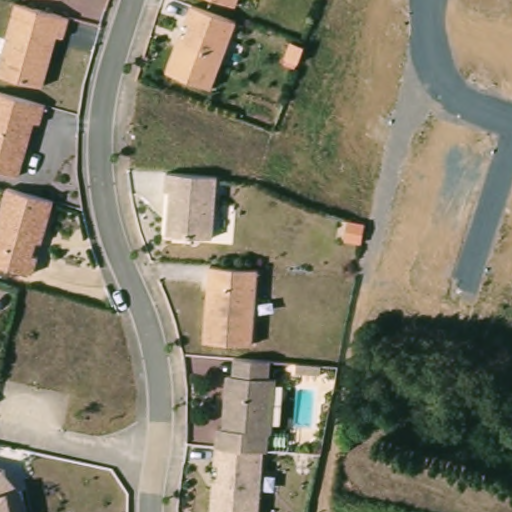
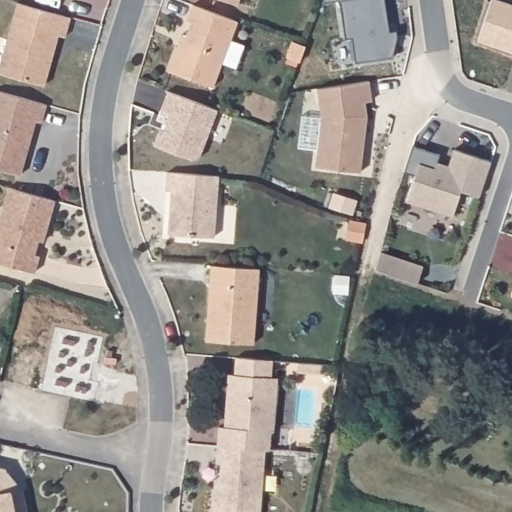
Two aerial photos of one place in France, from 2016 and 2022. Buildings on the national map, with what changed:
unchanged [(41,81),(0,69),(0,47),(14,0),(22,0),(67,13),(62,32),(55,30),(46,60),(41,81)]
unchanged [(235,17),(210,82),(166,66),(175,40),(179,30),(184,32),(189,17),(184,16),(190,0),(212,8),(235,17)]
unchanged [(231,0),(234,0),(234,1),(231,0)]
new [(389,31),(397,30),(397,36),(393,58),(359,62),(356,38),(350,39),(345,0),(384,0),(389,31)]
new [(512,5),(512,52),(478,41),(491,0),(496,0),(512,5)]
new [(322,118),(318,88),(369,81),(372,101),(366,102),(367,117),(361,172),(316,166),(322,118)]
unchanged [(20,174),(0,169),(0,93),(48,105),(43,125),(35,123),(20,174)]
new [(411,145),(440,154),(436,165),(448,169),(454,149),(491,161),(480,196),(460,190),(452,215),(405,200),(414,175),(402,171),(411,145)]
unchanged [(216,171),(211,232),(165,228),(169,185),(164,185),(165,167),(216,171)]
unchanged [(35,235),(31,249),(36,250),(31,267),(0,258),(0,201),(6,181),(52,195),(42,229),(40,236),(35,235)]
new [(380,251),(424,266),(418,283),(375,269),(380,251)]
unchanged [(255,264),(250,338),(202,335),(207,260),(255,264)]
new [(512,296),(511,295),(512,292),(512,296)]
unchanged [(224,368),(230,369),(231,352),(255,353),(268,354),(266,371),(273,372),(268,426),(266,426),(265,444),(260,444),(212,440),(214,420),(220,421),(221,407),(224,368)]
unchanged [(216,457),(211,457),(212,440),(260,444),(254,512),(234,512),(207,510),(209,483),(210,472),(215,472),(216,457)]
unchanged [(21,486),(27,512),(0,512),(0,466),(5,467),(21,486)]

